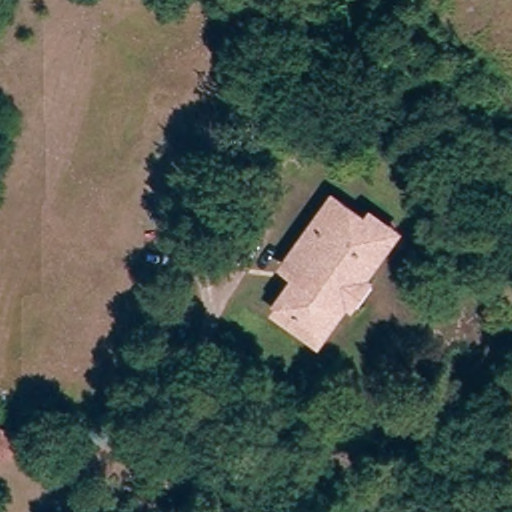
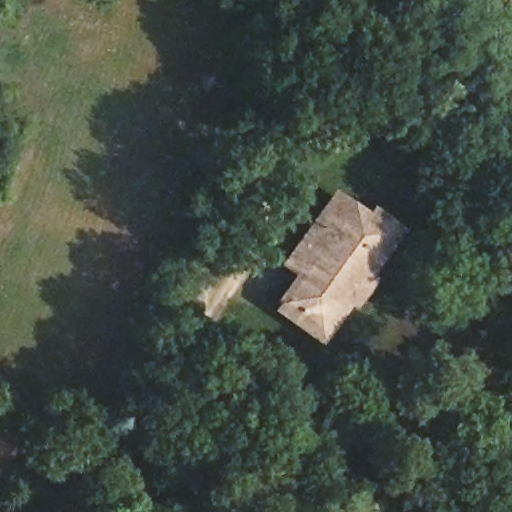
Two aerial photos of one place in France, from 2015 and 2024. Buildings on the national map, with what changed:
unchanged [(383,244),(316,337),(283,314),(300,290),(283,277),(333,208),(366,232),(383,244)]
unchanged [(371,225),(397,244),(365,288),(373,294),(354,320),(347,314),(318,354),(276,324),(283,314),(316,337),(383,244),(366,232),(371,225)]
unchanged [(7,466),(0,464),(0,436),(14,441),(7,466)]

